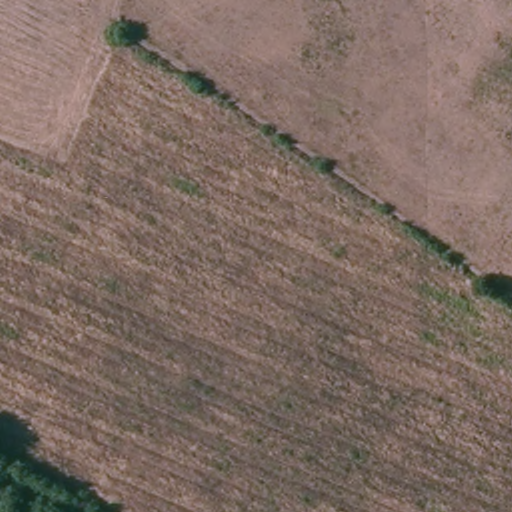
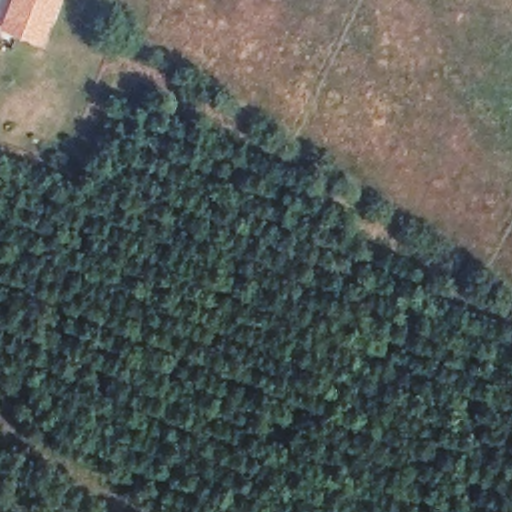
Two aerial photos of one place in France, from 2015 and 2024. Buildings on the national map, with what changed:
new [(43,47),(0,32),(12,0),(61,0),(43,47)]

